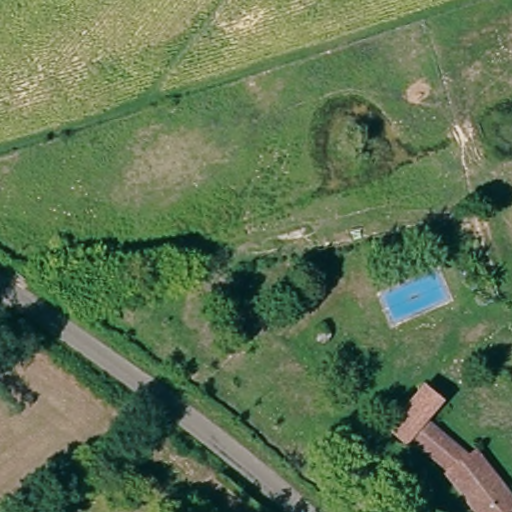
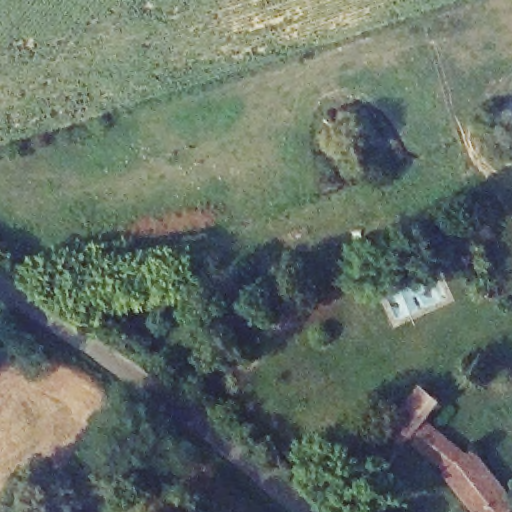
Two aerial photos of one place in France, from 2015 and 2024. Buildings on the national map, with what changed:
unchanged [(436,418),(422,435),(420,437),(415,443),(393,426),(432,380),(453,397),(436,418)]
unchanged [(436,418),(477,452),(456,468),(420,437),(422,435),(436,418)]
unchanged [(483,447),(512,485),(512,500),(498,512),(489,512),(456,468),(477,452),(483,447)]
unchanged [(512,500),(512,512),(498,512),(512,500)]

